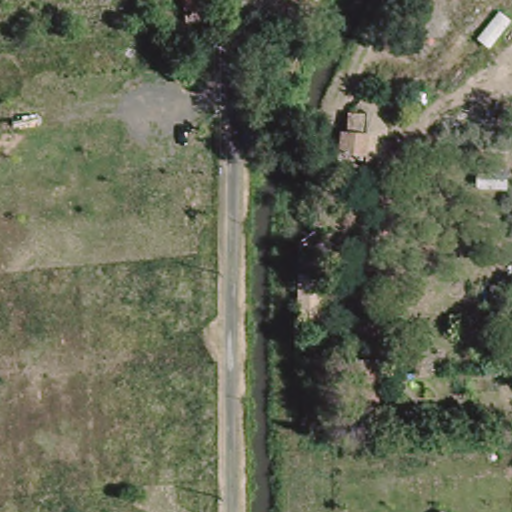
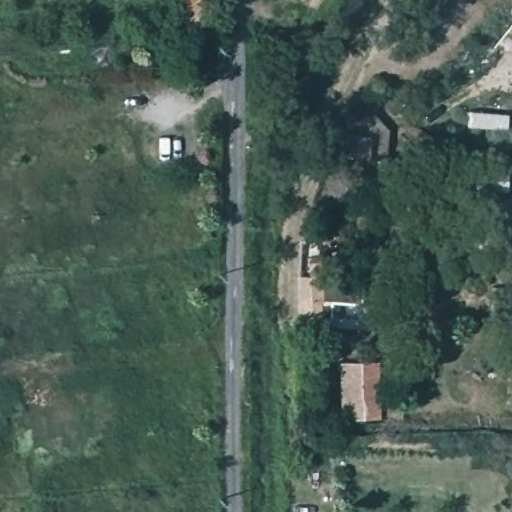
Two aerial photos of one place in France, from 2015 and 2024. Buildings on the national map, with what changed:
unchanged [(186,7),(185,0),(223,0),(223,6),(201,7),(186,7)]
unchanged [(293,92),(269,89),(273,61),(297,65),(293,92)]
unchanged [(371,156),(343,155),(343,134),(353,134),(353,116),(372,116),(372,134),(388,135),(386,156),(371,156)]
unchanged [(319,316),(300,316),(302,276),(320,277),(319,316)]
new [(383,420),(341,421),(339,362),(381,360),(383,420)]

